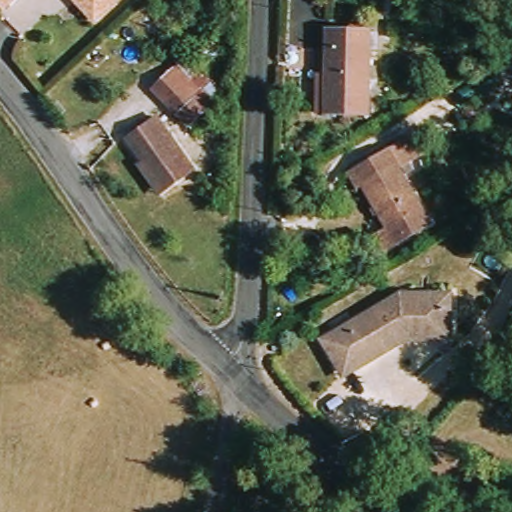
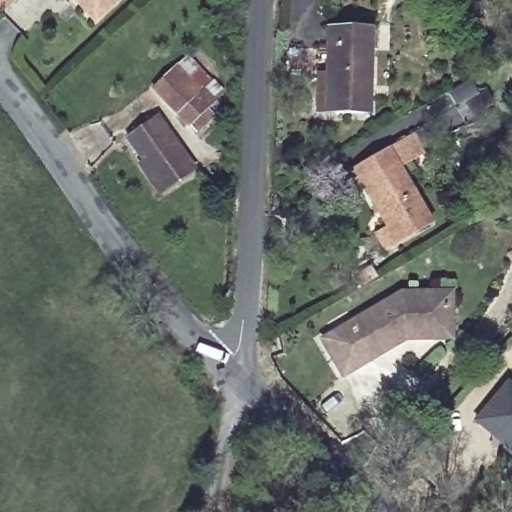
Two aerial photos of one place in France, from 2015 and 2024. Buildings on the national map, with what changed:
new [(8,0),(0,7),(0,0),(8,0)]
unchanged [(69,0),(118,0),(91,23),(69,0)]
unchanged [(325,40),(368,42),(368,116),(323,115),(325,40)]
unchanged [(210,105),(186,127),(151,89),(175,67),(210,105)]
unchanged [(141,173),(145,170),(124,141),(129,138),(155,119),(191,171),(167,189),(158,196),(141,173)]
unchanged [(383,227),(360,189),(355,192),(345,176),(382,152),(384,155),(403,142),(415,159),(395,172),(428,225),(395,247),(395,245),(382,253),(371,235),(383,227)]
unchanged [(318,342),(333,333),(400,296),(440,296),(451,296),(451,344),(433,343),(413,342),(410,337),(403,337),(403,344),(355,371),(341,379),(318,342)]
new [(507,385),(512,389),(512,451),(505,445),(493,436),(476,421),(507,385)]

